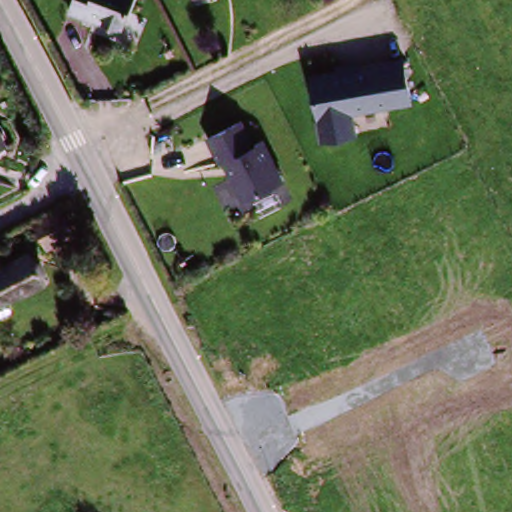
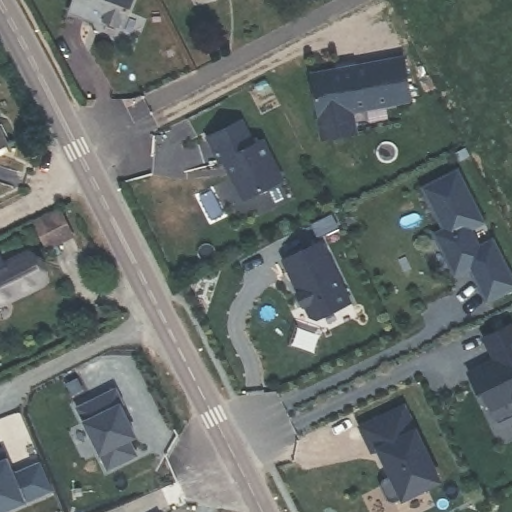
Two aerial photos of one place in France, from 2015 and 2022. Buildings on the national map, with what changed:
unchanged [(131,0),(137,2),(122,38),(97,27),(95,33),(69,22),(78,0),(131,0)]
unchanged [(355,133),(323,137),(313,74),(406,60),(412,101),(351,110),(355,133)]
unchanged [(252,124),(262,144),(267,142),(287,186),(243,205),(211,139),(252,124)]
unchanged [(0,138),(6,155),(0,158),(0,138)]
new [(440,190),(436,181),(457,171),(482,223),(468,230),(477,248),(491,242),(512,286),(512,290),(484,303),(467,268),(452,275),(433,233),(442,229),(427,197),(440,190)]
new [(317,243),(349,304),(320,319),(313,317),(308,306),(305,307),(299,294),(300,293),(283,260),(317,243)]
unchanged [(0,304),(0,256),(2,254),(8,267),(32,255),(44,282),(0,304)]
new [(483,367),(485,369),(495,363),(483,339),(510,325),(512,330),(512,418),(500,424),(483,393),(480,395),(469,375),(483,367)]
new [(120,402),(137,436),(129,442),(137,456),(107,471),(97,451),(81,420),(74,407),(115,386),(120,402)]
new [(403,405),(440,475),(437,482),(397,503),(390,501),(382,487),(385,480),(393,475),(379,448),(373,452),(360,427),(403,405)]
new [(25,499),(26,503),(4,512),(0,512),(0,453),(5,450),(8,456),(13,470),(40,460),(52,490),(25,499)]

